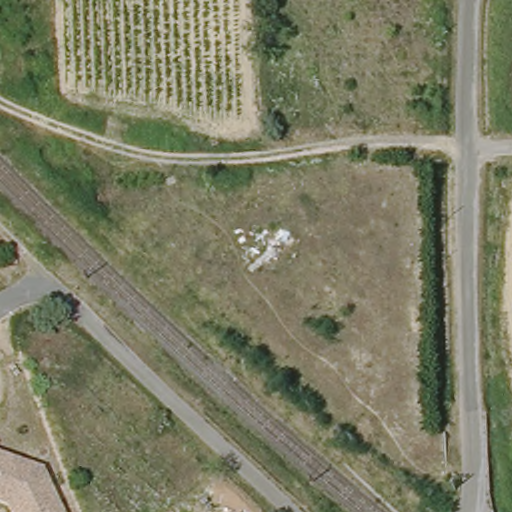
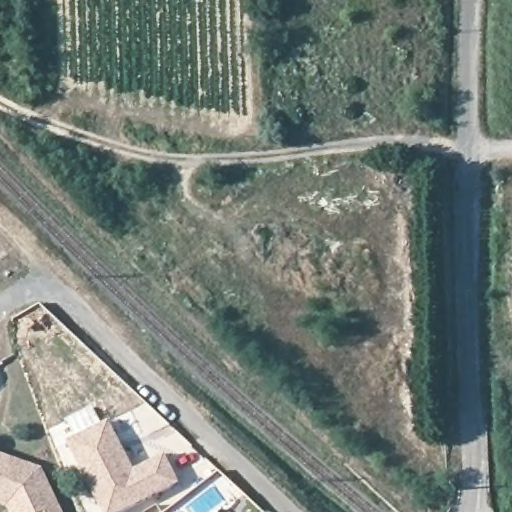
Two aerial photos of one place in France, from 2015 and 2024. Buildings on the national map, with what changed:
new [(135,468),(166,453),(181,482),(122,512),(102,512),(67,441),(110,420),(135,468)]
unchanged [(8,512),(7,510),(0,507),(0,459),(43,468),(63,512),(8,512)]

